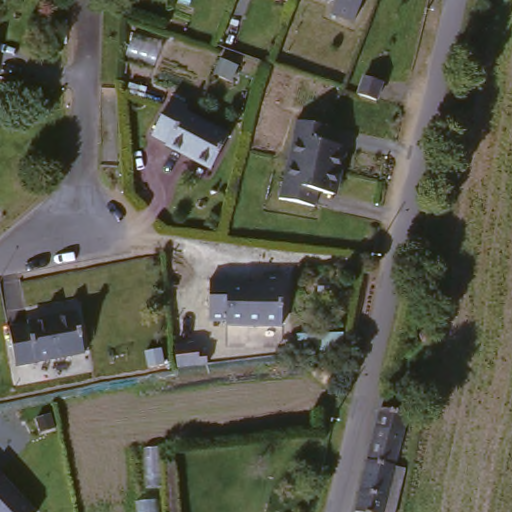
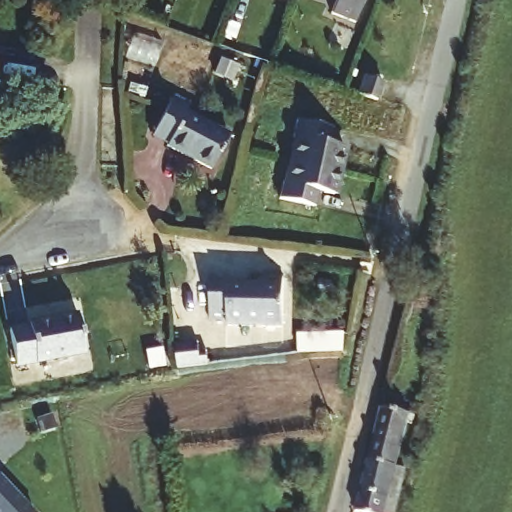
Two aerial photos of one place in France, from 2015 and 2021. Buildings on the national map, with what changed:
unchanged [(337,12),(341,0),(366,0),(358,21),(337,12)]
unchanged [(385,81),(379,101),(357,94),(365,72),(385,81)]
unchanged [(190,101),(186,110),(232,130),(217,164),(172,144),(174,141),(156,132),(175,94),(190,101)]
unchanged [(336,125),(332,140),(347,146),(337,190),(322,187),(317,203),(280,195),(284,178),(290,180),(300,135),(295,134),(298,118),(336,125)]
unchanged [(286,323),(230,319),(229,315),(209,313),(213,271),(232,274),(232,275),(265,278),(268,268),(287,271),(286,323)]
unchanged [(15,361),(10,325),(32,321),(32,318),(77,310),(84,349),(15,361)]
unchanged [(338,347),(292,352),(291,336),(336,329),(338,347)]
unchanged [(177,379),(175,355),(199,352),(200,375),(177,379)]
unchanged [(401,398),(400,407),(410,411),(395,475),(365,466),(377,417),(383,393),(401,398)]
unchanged [(394,478),(384,512),(353,512),(363,470),(394,478)]
unchanged [(35,512),(0,512),(0,475),(35,512)]

